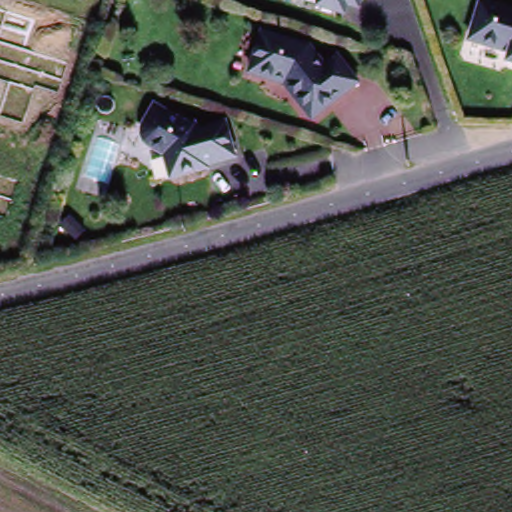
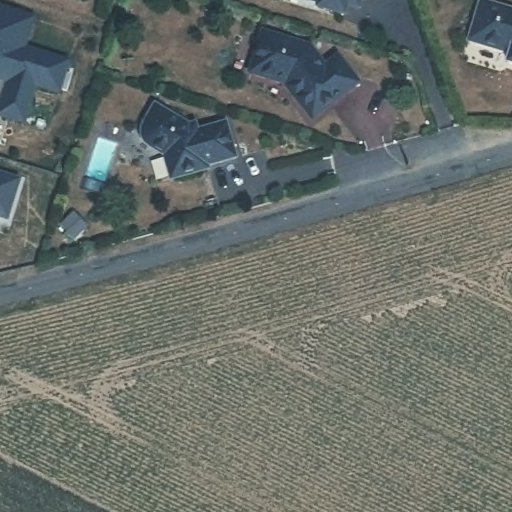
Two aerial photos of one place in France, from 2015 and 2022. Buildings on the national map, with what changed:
unchanged [(359,13),(347,9),(344,19),(317,11),(320,1),(317,0),(363,0),(359,13)]
new [(37,89),(24,126),(0,117),(0,100),(5,85),(0,83),(0,6),(36,17),(26,49),(70,63),(59,96),(37,89)]
unchanged [(508,69),(511,59),(470,47),(482,8),(512,17),(512,70),(508,69)]
unchanged [(325,73),(338,63),(359,89),(312,126),(284,90),(250,79),(263,38),(310,53),(325,73)]
unchanged [(235,163),(206,171),(207,174),(172,185),(165,161),(151,153),(145,148),(143,142),(143,135),(146,129),(155,111),(189,131),(195,130),(197,137),(225,129),(235,163)]
new [(0,173),(21,180),(7,221),(0,219),(0,173)]
unchanged [(84,232),(76,241),(65,230),(73,221),(84,232)]

